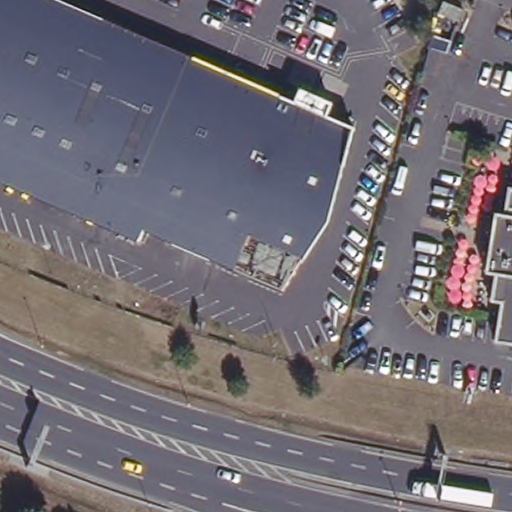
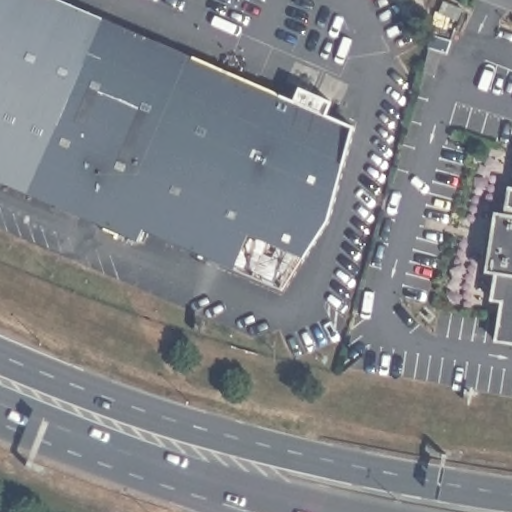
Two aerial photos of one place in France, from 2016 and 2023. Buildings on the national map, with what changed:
unchanged [(161,27),(190,40),(184,54),(293,101),(299,87),(329,100),(323,114),(352,127),(327,217),(281,288),(252,276),(143,229),(138,241),(0,181),(0,0),(60,0),(155,41),(161,27)]
unchanged [(457,21),(438,12),(443,1),(462,10),(457,21)]
unchanged [(429,48),(441,52),(434,76),(422,72),(429,48)]
unchanged [(502,269),(494,312),(483,311),(491,267),(481,266),(491,207),(500,208),(505,181),(512,182),(512,207),(511,210),(502,269)]
unchanged [(494,312),(502,269),(511,210),(512,207),(512,338),(491,335),(494,312)]

